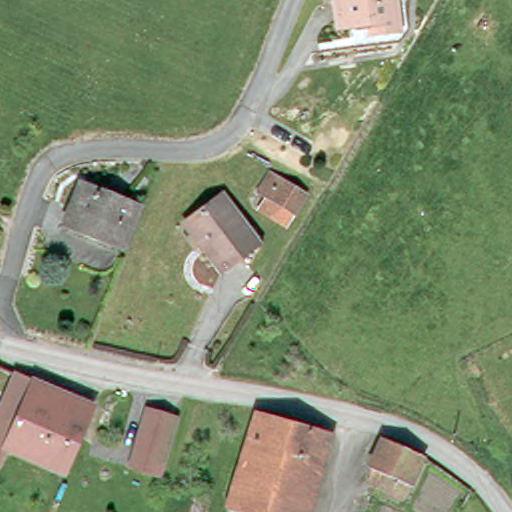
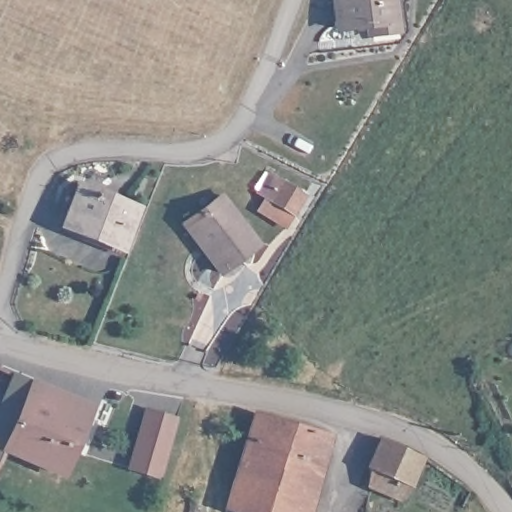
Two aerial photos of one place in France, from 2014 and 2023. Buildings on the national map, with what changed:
unchanged [(369,31),(368,17),(361,18),(361,23),(339,26),(335,0),(397,0),(400,28),(369,31)]
unchanged [(256,192),(267,172),(306,194),(294,214),(256,192)]
unchanged [(138,209),(123,247),(67,225),(81,187),(138,209)]
unchanged [(191,219),(223,195),(260,245),(221,273),(208,257),(184,224),(191,219)]
unchanged [(2,460),(0,464),(0,390),(9,394),(18,375),(34,382),(7,449),(2,460)]
unchanged [(64,474),(7,449),(34,382),(93,407),(64,474)]
unchanged [(166,426),(173,428),(168,449),(138,443),(143,427),(149,429),(156,402),(171,406),(166,426)]
unchanged [(223,509),(253,413),(328,435),(305,512),(234,512),(223,509)]
unchanged [(406,499),(373,485),(379,470),(370,466),(382,438),(424,457),(406,499)]
unchanged [(159,457),(154,473),(133,466),(136,451),(159,457)]

